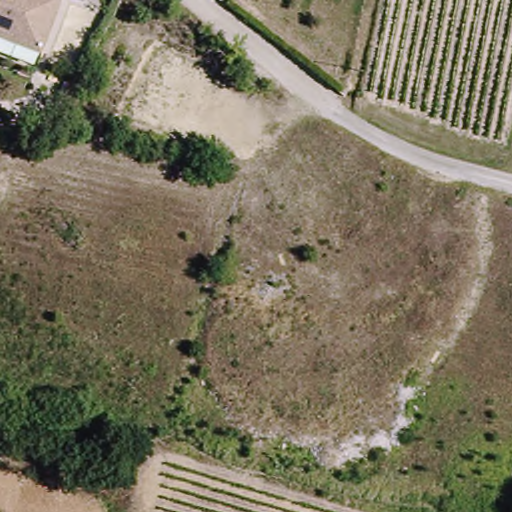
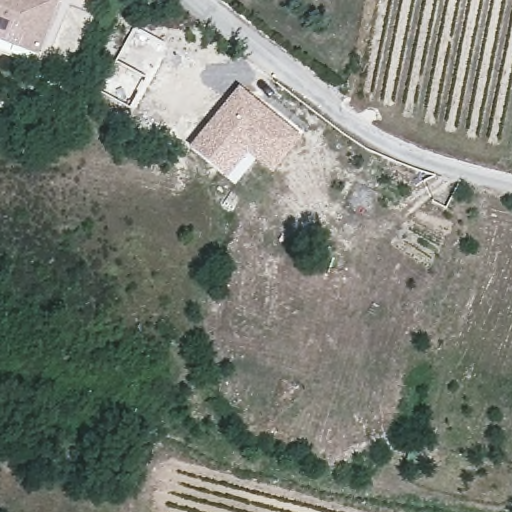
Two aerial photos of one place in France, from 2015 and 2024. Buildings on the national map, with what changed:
unchanged [(0,26),(0,0),(60,0),(45,41),(0,26)]
unchanged [(41,51),(0,38),(0,26),(45,41),(41,51)]
new [(238,87),(301,139),(272,175),(247,155),(227,179),(189,147),(238,87)]

